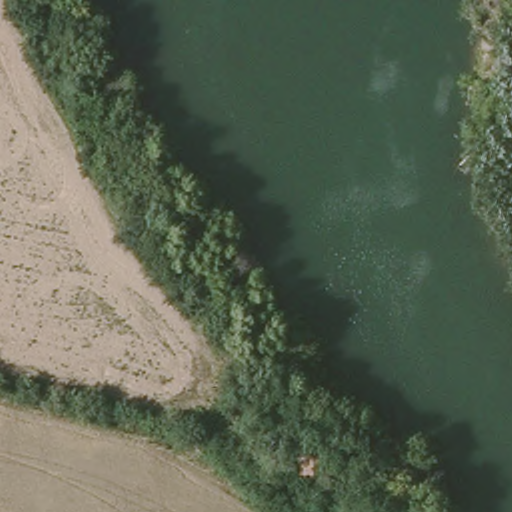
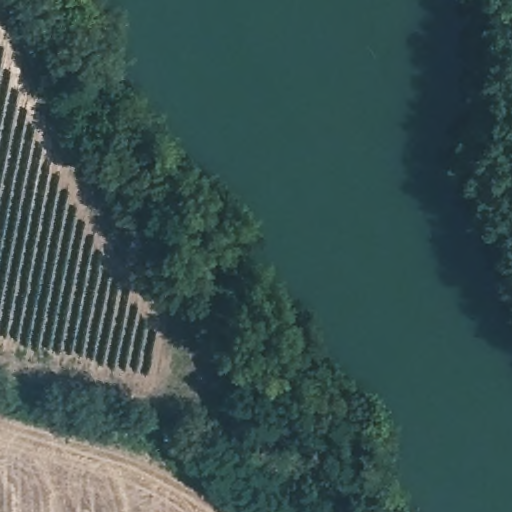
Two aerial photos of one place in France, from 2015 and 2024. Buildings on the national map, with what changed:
unchanged [(324,450),(326,481),(300,482),(297,452),(324,450)]

